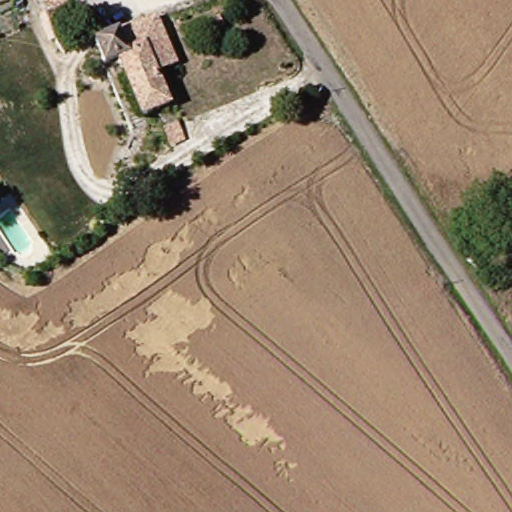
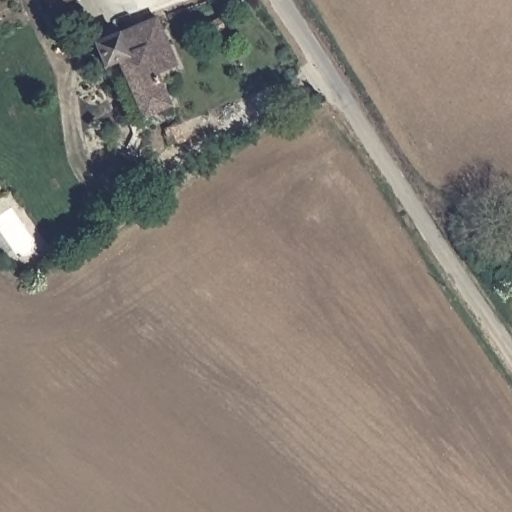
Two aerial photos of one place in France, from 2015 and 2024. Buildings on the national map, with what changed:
unchanged [(41,0),(61,0),(66,13),(50,22),(41,0)]
unchanged [(91,0),(66,13),(61,0),(91,0)]
unchanged [(174,66),(154,74),(167,110),(139,120),(117,64),(106,68),(98,42),(117,34),(156,18),(174,66)]
unchanged [(219,23),(224,32),(213,39),(207,31),(219,23)]
unchanged [(176,129),(182,142),(170,148),(163,136),(176,129)]

